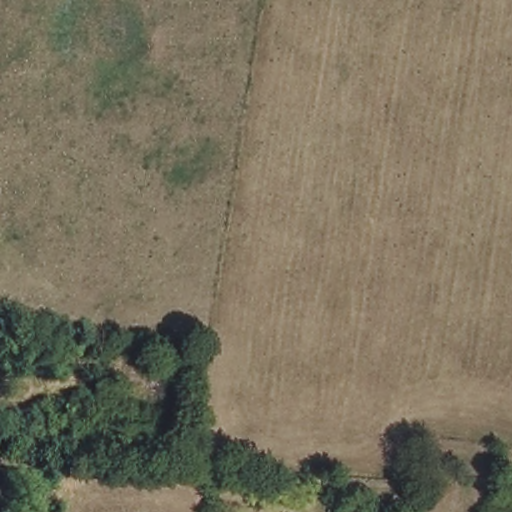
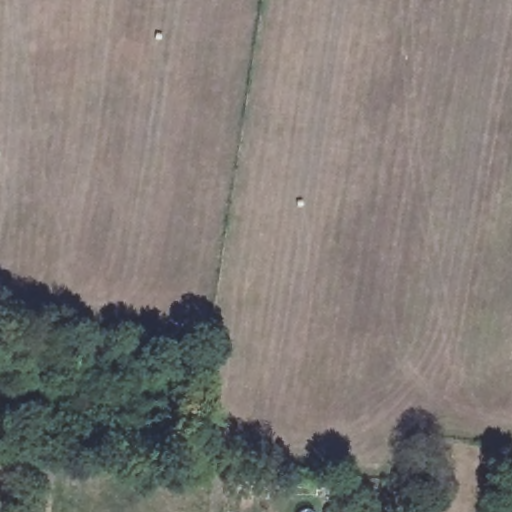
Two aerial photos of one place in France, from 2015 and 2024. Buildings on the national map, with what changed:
[]

